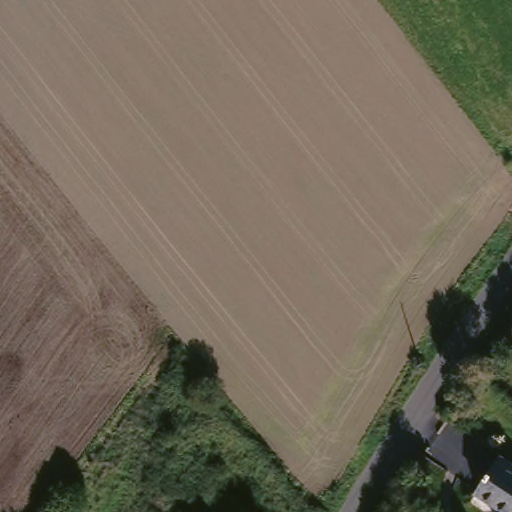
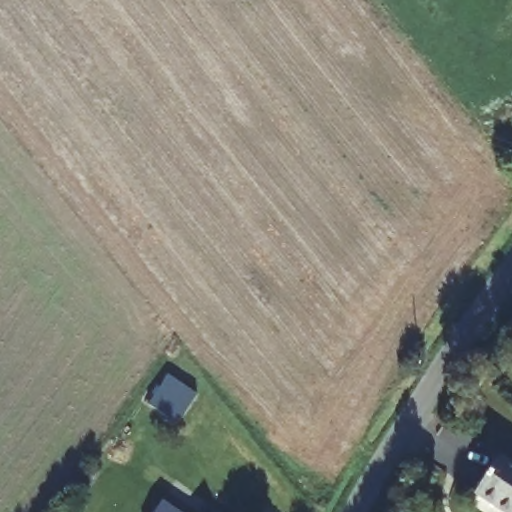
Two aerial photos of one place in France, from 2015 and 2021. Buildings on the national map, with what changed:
new [(170,376),(195,392),(176,422),(151,406),(170,376)]
unchanged [(508,453),(512,455),(512,505),(485,488),(508,453)]
unchanged [(160,495),(186,512),(153,512),(160,495)]

